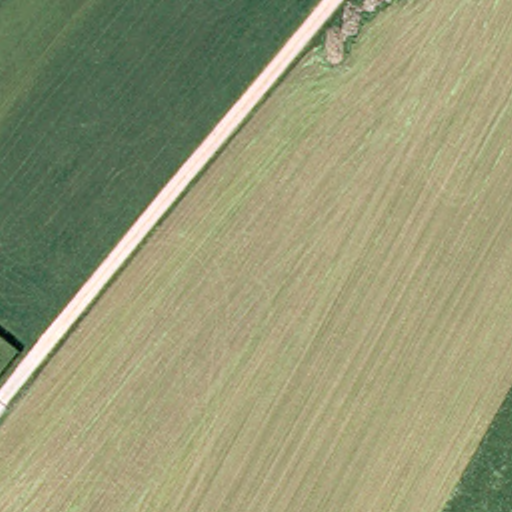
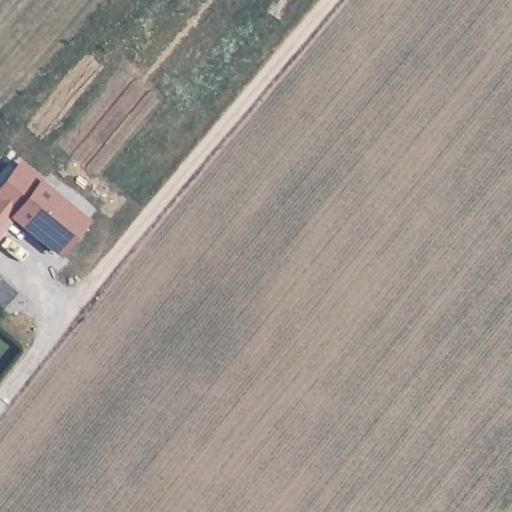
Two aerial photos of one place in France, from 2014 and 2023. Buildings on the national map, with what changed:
new [(60,260),(8,221),(0,232),(0,182),(19,160),(44,178),(40,182),(90,220),(60,260)]

